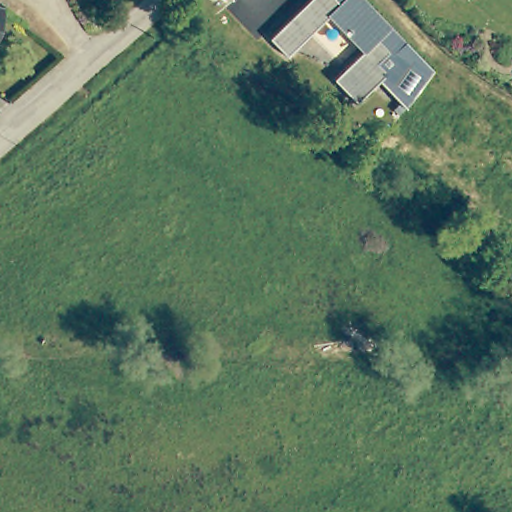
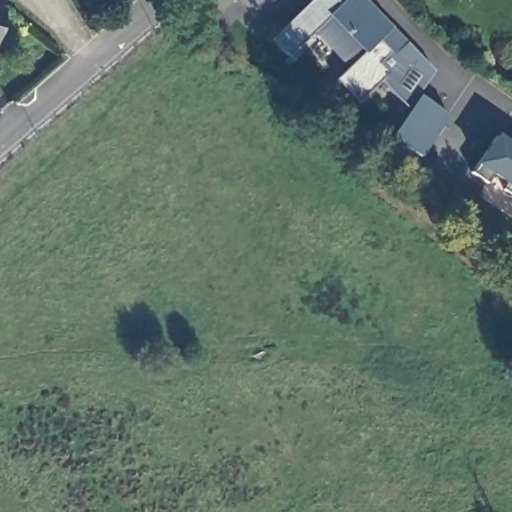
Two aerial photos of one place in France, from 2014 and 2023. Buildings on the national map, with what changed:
unchanged [(406,109),(380,82),(357,104),(334,80),(362,53),(328,18),(288,58),(269,39),(310,0),(366,0),(434,72),(406,109)]
unchanged [(0,24),(0,7),(4,9),(0,24)]
new [(448,116),(419,157),(389,136),(406,109),(418,94),(448,116)]
new [(512,142),(512,194),(504,189),(507,184),(491,174),(486,181),(473,170),(477,164),(498,131),(512,142)]

